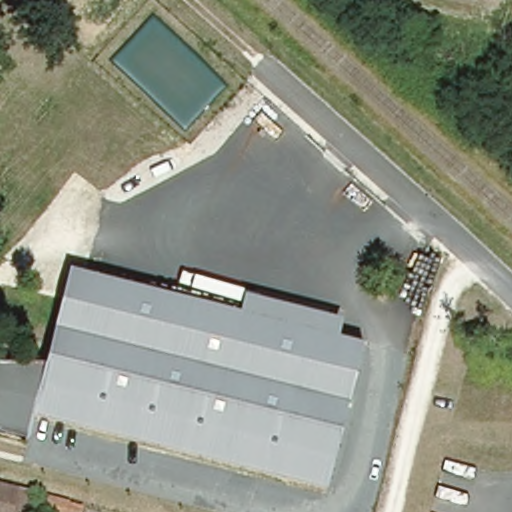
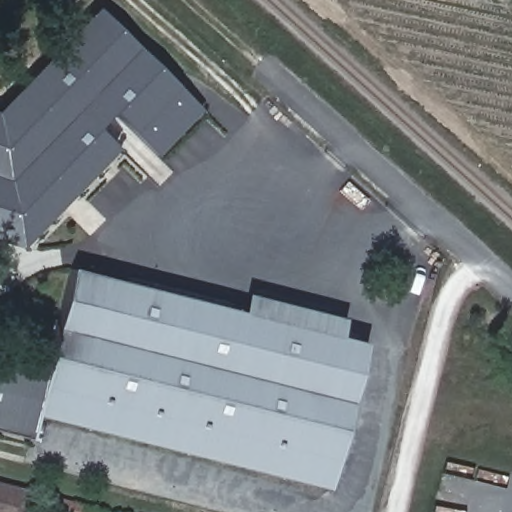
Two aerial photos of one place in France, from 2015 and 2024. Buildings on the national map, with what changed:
new [(111,111),(95,128),(116,148),(20,246),(0,240),(0,105),(96,8),(200,110),(158,154),(111,111)]
unchanged [(31,414),(25,439),(0,432),(0,363),(44,362),(69,266),(239,312),(242,293),(343,318),(338,337),(368,346),(326,489),(31,414)]
unchanged [(29,512),(15,512),(0,512),(0,479),(36,488),(29,512)]

